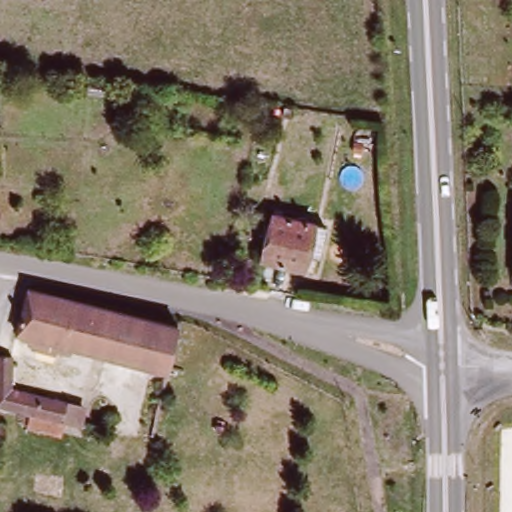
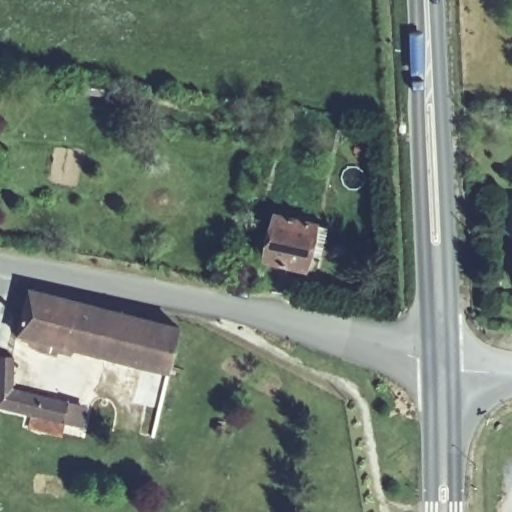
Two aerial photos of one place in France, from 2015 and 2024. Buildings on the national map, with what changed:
unchanged [(85,104),(86,96),(102,99),(102,105),(85,104)]
unchanged [(305,268),(262,258),(272,213),(316,223),(305,268)]
unchanged [(167,372),(15,334),(27,291),(177,329),(167,372)]
unchanged [(62,436),(44,432),(47,419),(20,414),(0,410),(0,356),(11,357),(9,390),(35,394),(70,402),(62,436)]

